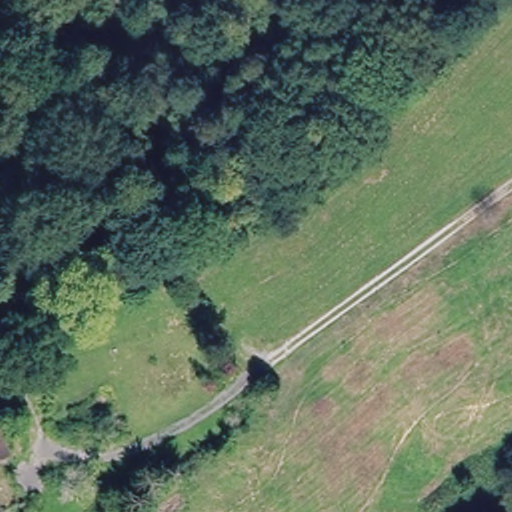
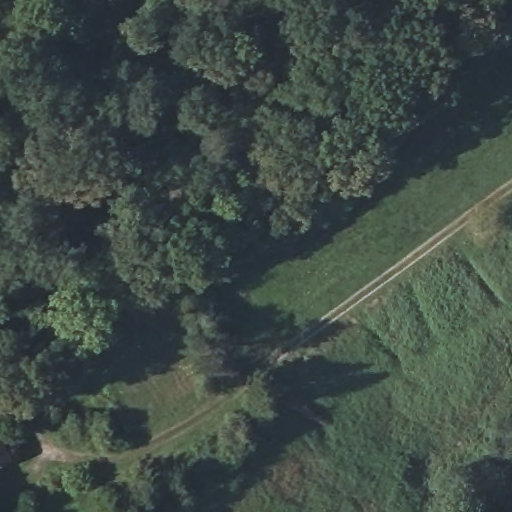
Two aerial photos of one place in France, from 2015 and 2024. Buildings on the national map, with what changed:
unchanged [(0,467),(0,433),(12,461),(0,467)]
unchanged [(1,512),(0,512),(0,509),(1,512)]

